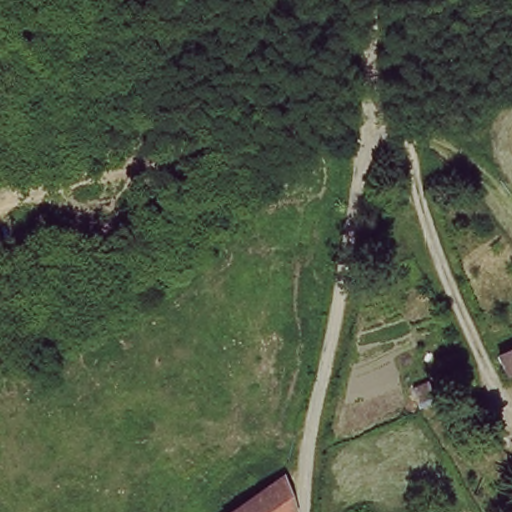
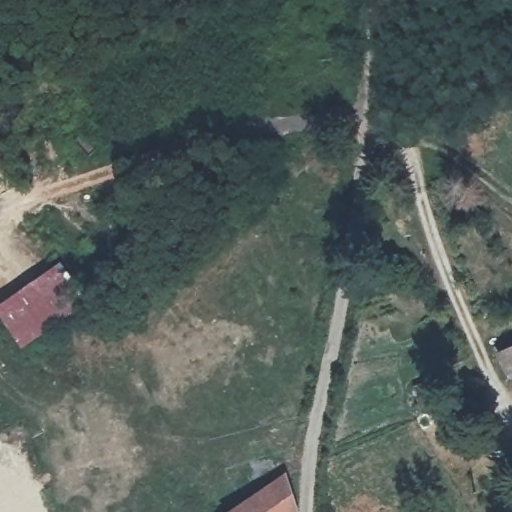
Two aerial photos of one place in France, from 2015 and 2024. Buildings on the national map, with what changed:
new [(60,262),(89,304),(84,309),(82,305),(21,347),(0,319),(0,305),(60,262)]
unchanged [(487,362),(512,352),(512,379),(496,385),(487,362)]
unchanged [(282,479),(283,487),(288,512),(224,512),(257,493),(282,479)]

